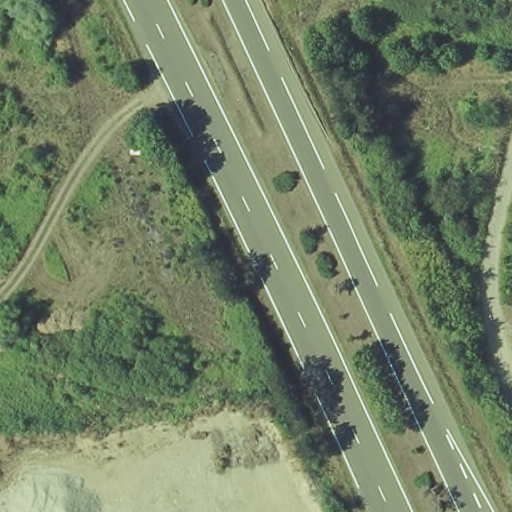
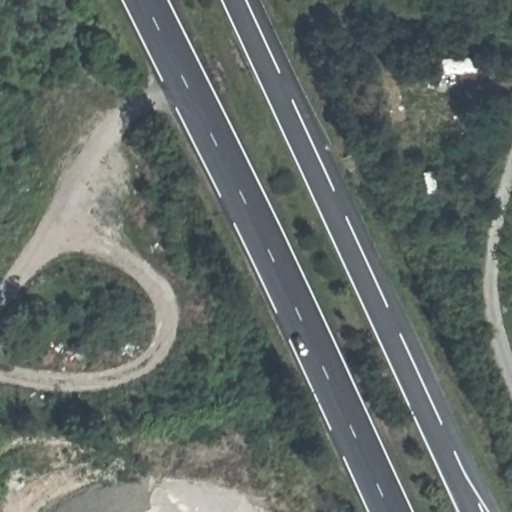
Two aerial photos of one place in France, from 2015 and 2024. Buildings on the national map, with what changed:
[]

